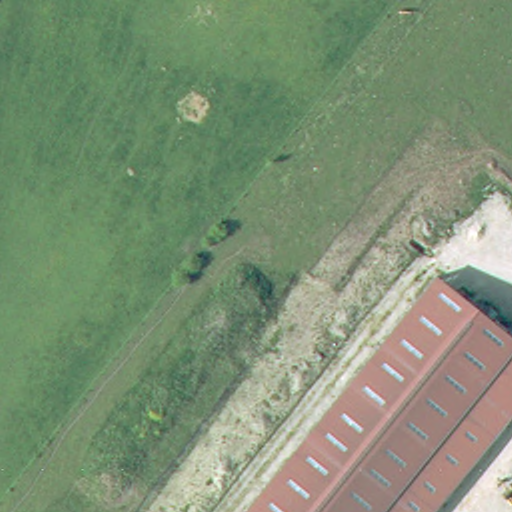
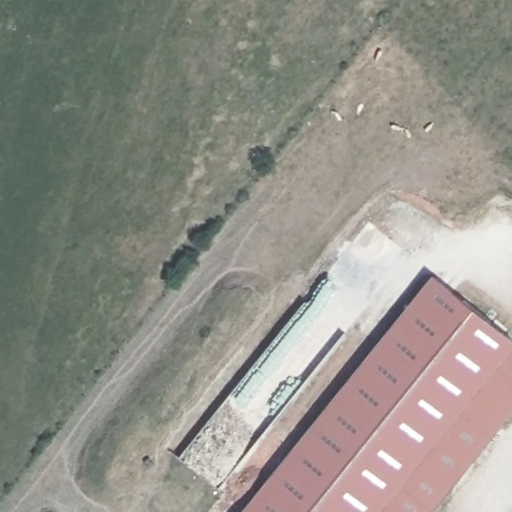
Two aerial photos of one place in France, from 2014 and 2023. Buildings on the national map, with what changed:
unchanged [(512,414),(433,512),(246,512),(435,275),(512,338),(512,414)]

